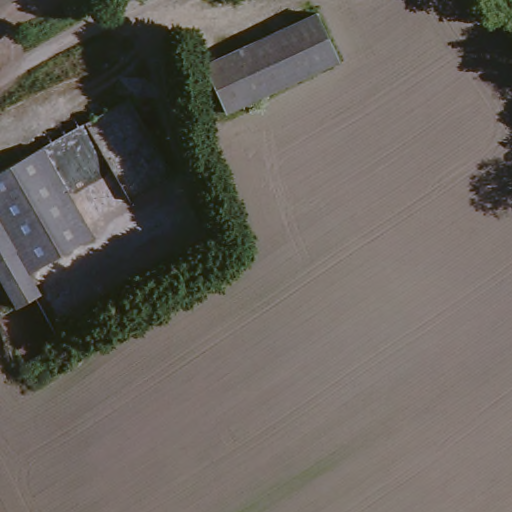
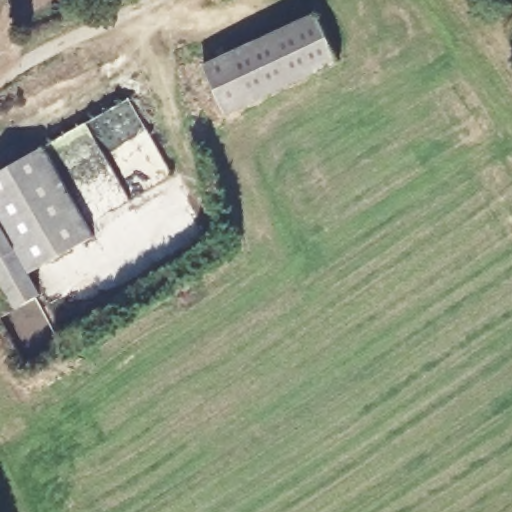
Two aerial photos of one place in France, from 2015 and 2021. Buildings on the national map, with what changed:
unchanged [(200,69),(311,18),(333,67),(220,116),(200,69)]
unchanged [(88,229),(95,242),(29,280),(0,230),(0,176),(44,151),(88,229)]
unchanged [(15,313),(0,285),(0,230),(29,280),(39,299),(15,313)]

